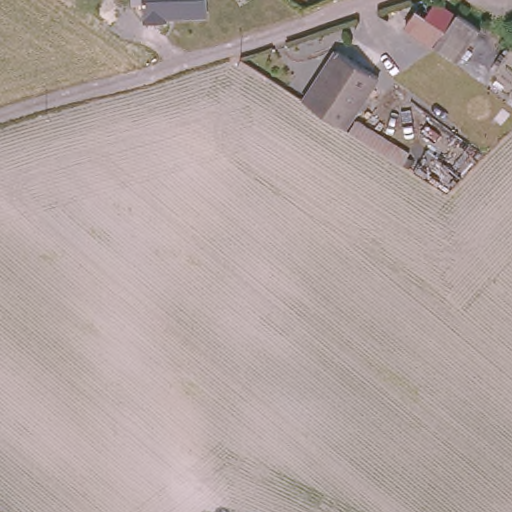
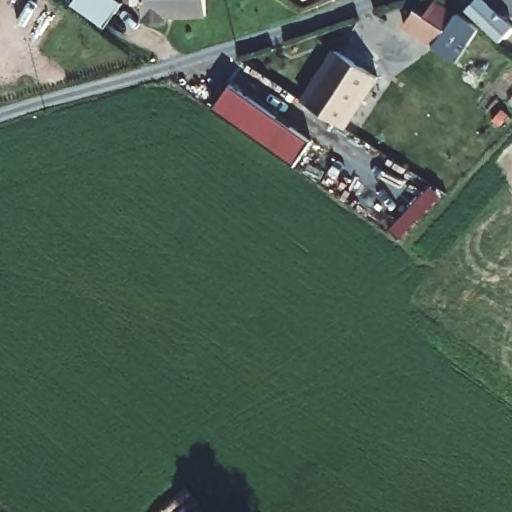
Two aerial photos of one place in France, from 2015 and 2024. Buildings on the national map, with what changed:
new [(72,0),(118,0),(121,2),(113,13),(109,10),(99,24),(70,3),(72,0)]
unchanged [(138,0),(204,0),(203,20),(138,19),(138,0)]
unchanged [(457,62),(433,47),(407,29),(418,12),(425,17),(433,5),(453,19),(456,14),(478,30),(457,62)]
unchanged [(382,82),(348,133),(307,105),(340,55),(382,82)]
new [(312,142),(295,165),(215,108),(231,85),(312,142)]

